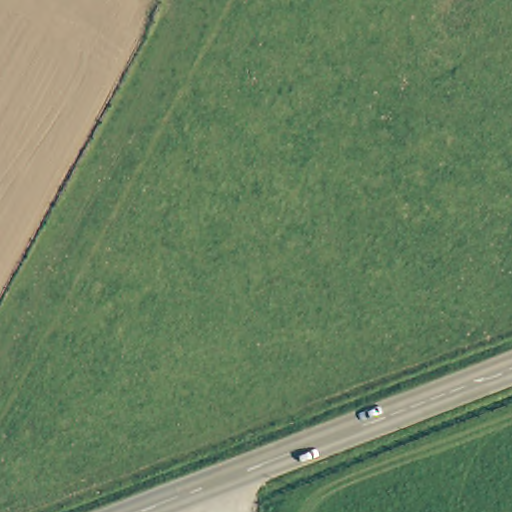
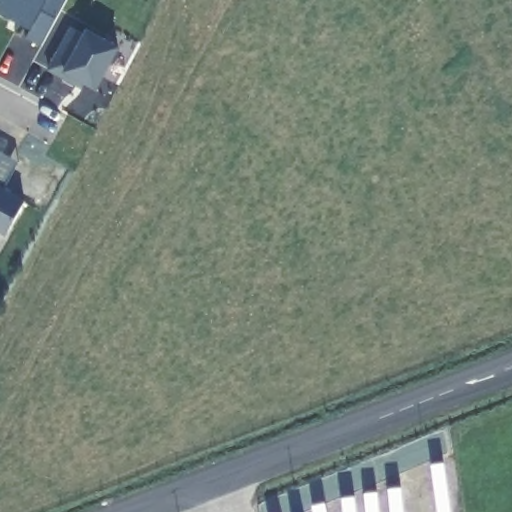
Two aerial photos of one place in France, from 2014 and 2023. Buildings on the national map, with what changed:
new [(26,36),(31,29),(0,12),(0,0),(65,0),(42,45),(26,36)]
new [(97,89),(86,83),(84,89),(50,69),(72,28),(86,34),(89,29),(120,46),(97,89)]
new [(25,198),(5,234),(0,232),(0,183),(25,198)]

